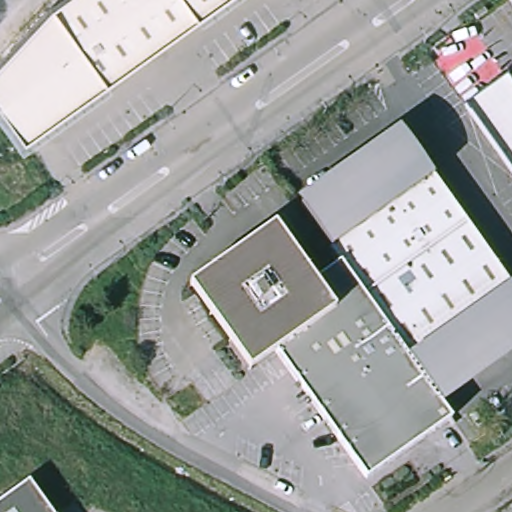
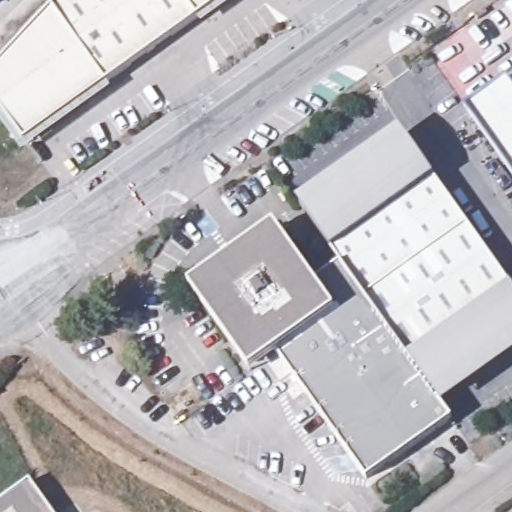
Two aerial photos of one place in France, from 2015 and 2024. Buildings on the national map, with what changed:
unchanged [(52,6),(61,0),(223,0),(23,142),(0,109),(0,62),(52,6)]
unchanged [(512,98),(512,138),(490,153),(459,108),(499,80),(512,98)]
unchanged [(335,264),(294,207),(329,183),(363,158),(397,134),(512,296),(512,345),(501,352),(466,376),(432,401),(335,264)]
unchanged [(512,183),(490,153),(512,138),(512,183)]
unchanged [(447,422),(364,481),(273,353),(244,373),(184,287),(268,228),(308,283),(335,264),(432,401),(447,422)]
unchanged [(0,512),(0,507),(35,482),(56,512),(0,512)]

